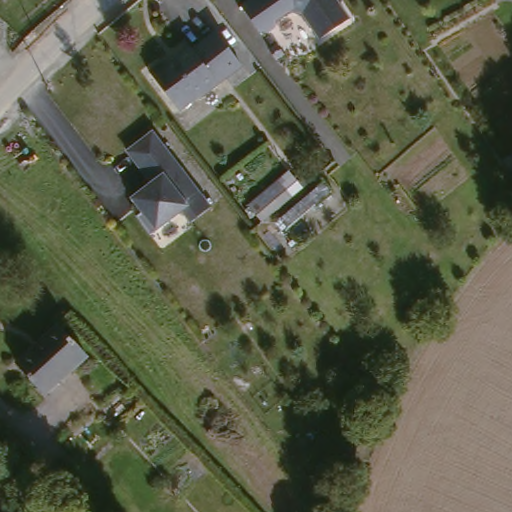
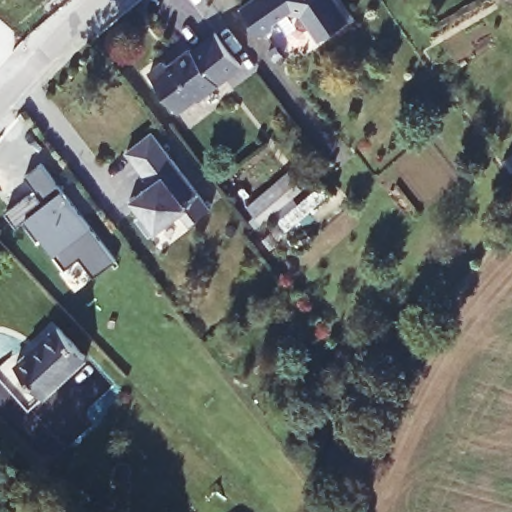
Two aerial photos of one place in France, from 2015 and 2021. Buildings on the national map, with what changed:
unchanged [(254,0),(336,0),(350,22),(320,42),(302,16),(288,14),(276,23),(275,30),(265,37),(257,36),(240,10),(254,0)]
unchanged [(166,66),(170,71),(193,53),(195,56),(218,38),(241,69),(200,101),(196,100),(178,114),(151,77),(166,66)]
unchanged [(155,136),(213,212),(194,227),(184,216),(153,241),(140,223),(145,219),(135,205),(155,188),(131,156),(155,136)]
new [(63,188),(92,225),(90,226),(117,260),(96,276),(81,256),(66,267),(56,255),(40,237),(39,238),(25,219),(47,201),(25,176),(42,163),(63,188)]
unchanged [(245,206),(276,183),(280,187),(290,200),(258,223),(249,210),(245,206)]
unchanged [(19,366),(60,327),(89,358),(46,396),(19,366)]
unchanged [(30,512),(21,512),(26,507),(30,512)]

